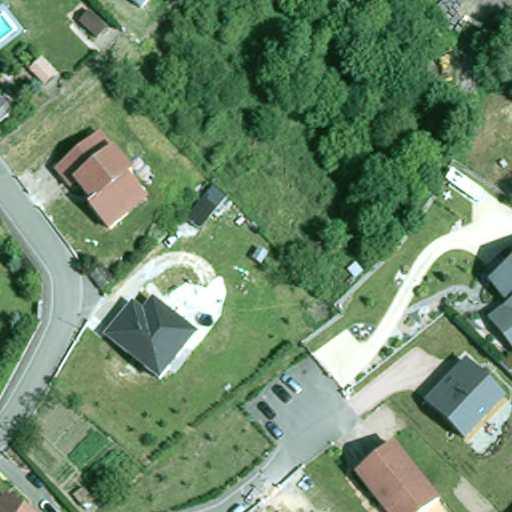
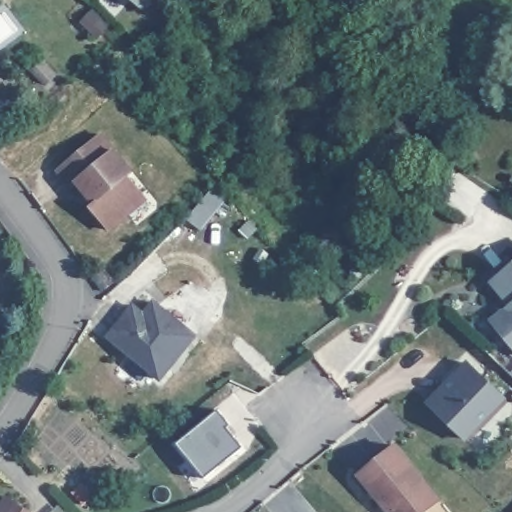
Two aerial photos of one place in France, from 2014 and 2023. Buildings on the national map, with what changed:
unchanged [(126,0),(150,0),(139,11),(126,0)]
unchanged [(112,31),(101,42),(84,27),(95,16),(112,31)]
unchanged [(362,68),(372,57),(365,51),(378,37),(397,53),(384,67),(373,79),(362,68)]
unchanged [(0,129),(0,110),(3,107),(13,118),(0,129)]
unchanged [(132,220),(112,235),(93,212),(97,208),(80,188),(75,193),(60,176),(77,162),(100,144),(147,200),(150,205),(132,220)]
unchanged [(495,279),(512,265),(512,299),(495,279)]
unchanged [(95,281),(107,271),(117,286),(105,295),(95,281)]
unchanged [(114,336),(140,304),(150,313),(160,301),(176,314),(172,319),(182,328),(187,323),(202,336),(182,359),(178,355),(172,363),(176,367),(166,379),(114,336)]
unchanged [(495,318),(512,305),(512,339),(495,318)]
unchanged [(505,401),(462,441),(423,404),(467,361),(505,401)]
new [(227,428),(243,447),(205,478),(177,444),(220,410),(232,425),(227,428)]
unchanged [(445,503),(434,512),(396,512),(397,511),(390,503),(387,506),(363,478),(400,448),(445,503)]
unchanged [(11,499),(30,512),(2,512),(11,499)]

